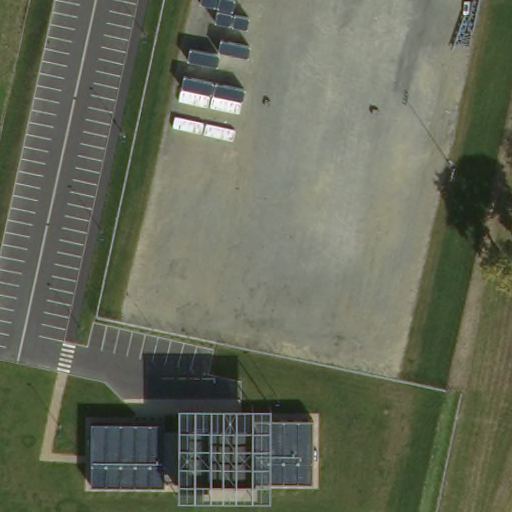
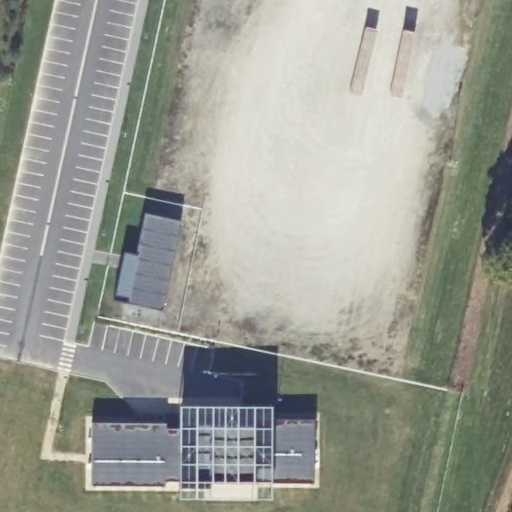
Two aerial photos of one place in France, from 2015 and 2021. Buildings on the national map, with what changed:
new [(182,219),(163,309),(114,298),(125,249),(136,252),(145,211),(182,219)]
unchanged [(95,423),(180,423),(180,400),(195,400),(197,424),(277,425),(316,422),(314,478),(274,481),(204,483),(201,498),(181,500),(180,484),(94,482),(95,423)]

